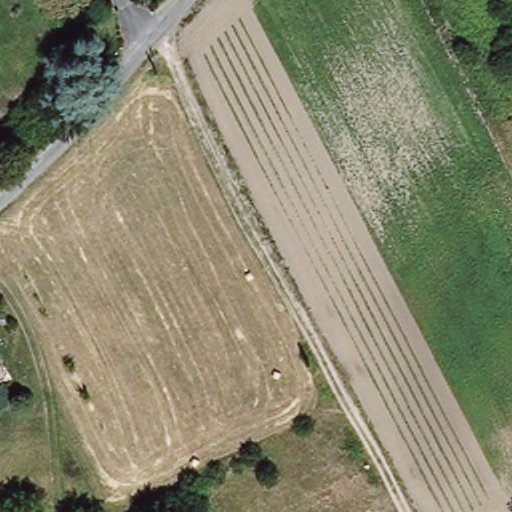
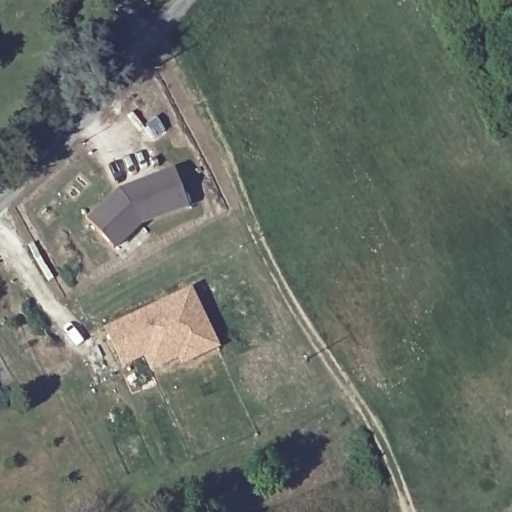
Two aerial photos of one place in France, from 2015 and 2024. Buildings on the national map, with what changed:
new [(191,200),(143,216),(116,240),(91,212),(121,185),(125,189),(136,179),(179,164),(191,200)]
new [(180,349),(173,334),(124,356),(109,321),(192,284),(214,333),(218,340),(183,355),(180,349)]

